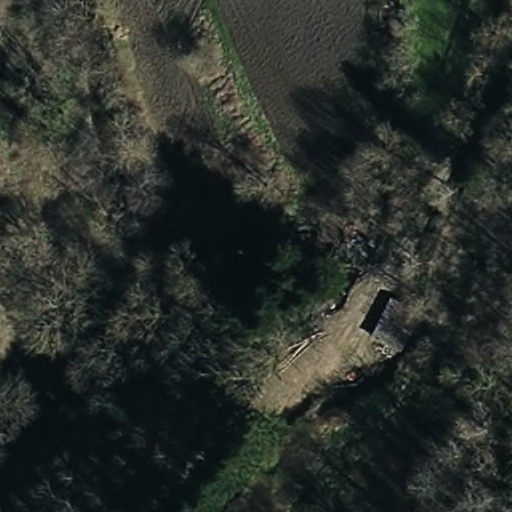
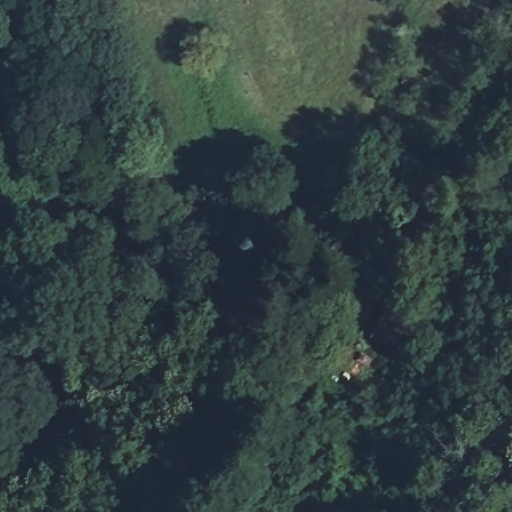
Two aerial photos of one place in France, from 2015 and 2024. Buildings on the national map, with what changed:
unchanged [(405,307),(393,350),(370,341),(388,301),(405,307)]

